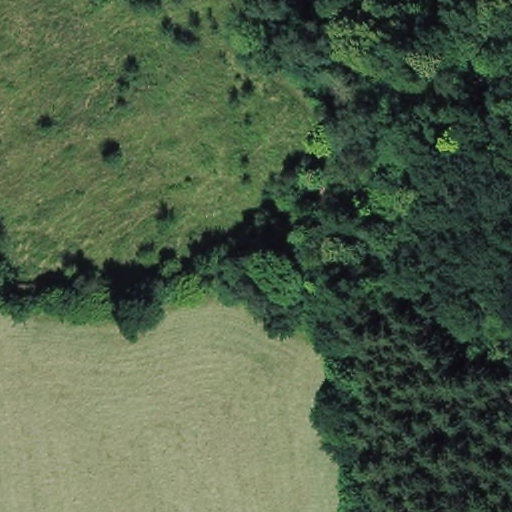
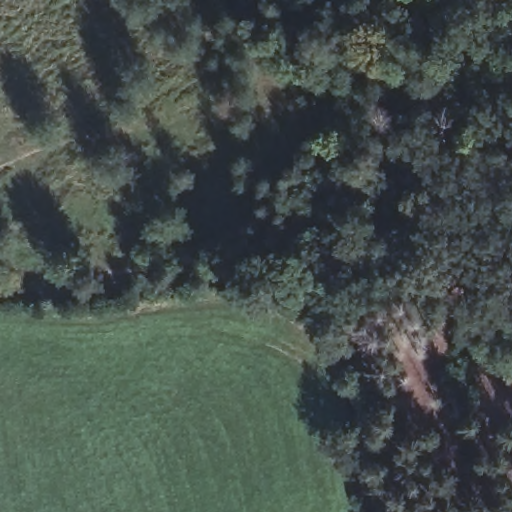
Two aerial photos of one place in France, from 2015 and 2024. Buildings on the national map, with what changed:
[]

